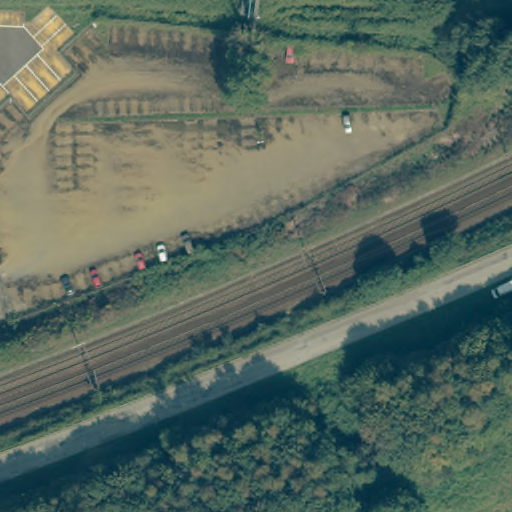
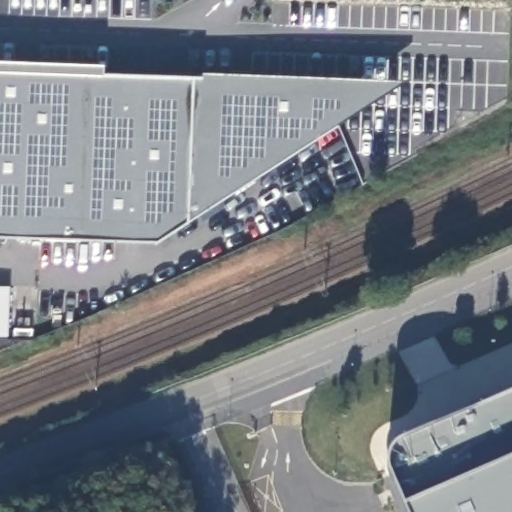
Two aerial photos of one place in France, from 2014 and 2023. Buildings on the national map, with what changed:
new [(104,73),(202,76),(202,71),(402,80),(157,240),(0,234),(0,59),(105,64),(104,73)]
new [(11,334),(0,334),(0,284),(13,285),(11,334)]
new [(388,466),(392,451),(405,442),(475,412),(512,396),(512,512),(406,512),(405,509),(388,466)]

